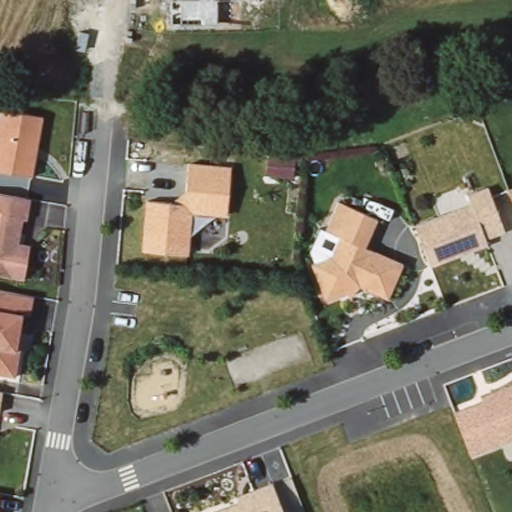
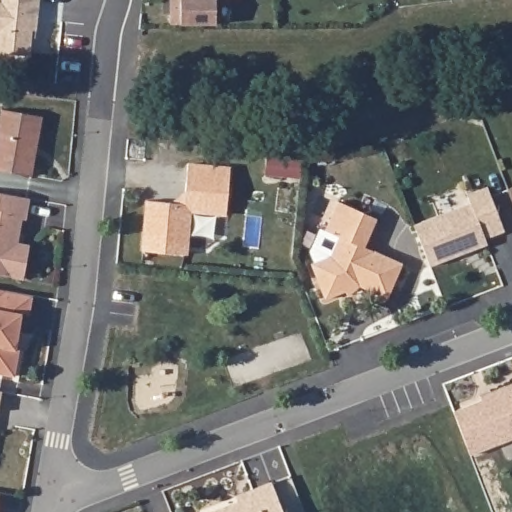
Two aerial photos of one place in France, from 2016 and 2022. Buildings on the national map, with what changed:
new [(30,56),(0,53),(0,0),(39,0),(36,30),(35,39),(31,38),(30,56)]
unchanged [(171,23),(171,0),(218,0),(218,24),(171,23)]
unchanged [(33,175),(0,169),(0,136),(4,111),(45,120),(33,175)]
unchanged [(234,170),(227,217),(195,215),(190,254),(142,247),(148,203),(188,206),(191,166),(234,170)]
unchanged [(475,204),(473,194),(491,187),(506,235),(487,243),(490,250),(437,266),(419,224),(475,204)]
unchanged [(29,223),(25,221),(22,245),(31,248),(28,280),(0,275),(0,192),(33,197),(29,223)]
unchanged [(381,219),(369,247),(406,265),(391,298),(359,285),(331,296),(320,266),(338,259),(348,236),(328,227),(338,200),(381,219)]
unchanged [(31,320),(24,315),(20,346),(14,373),(0,372),(0,292),(34,299),(31,320)]
unchanged [(481,397),(481,391),(512,381),(512,435),(470,449),(454,407),(481,397)]
unchanged [(1,418),(0,418),(0,393),(5,393),(1,418)]
unchanged [(285,512),(219,512),(244,504),(243,496),(275,486),(285,512)]
unchanged [(0,499),(0,493),(1,493),(0,499)]

